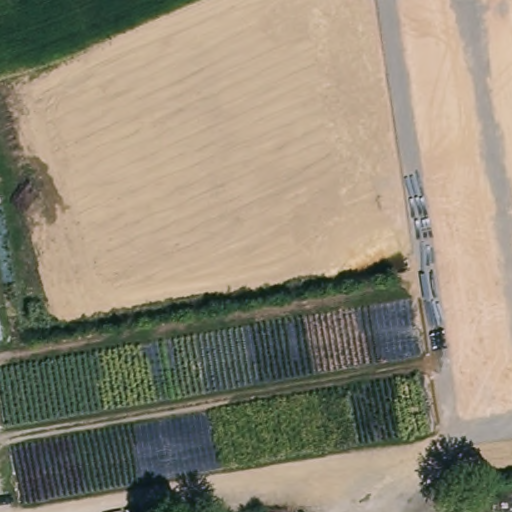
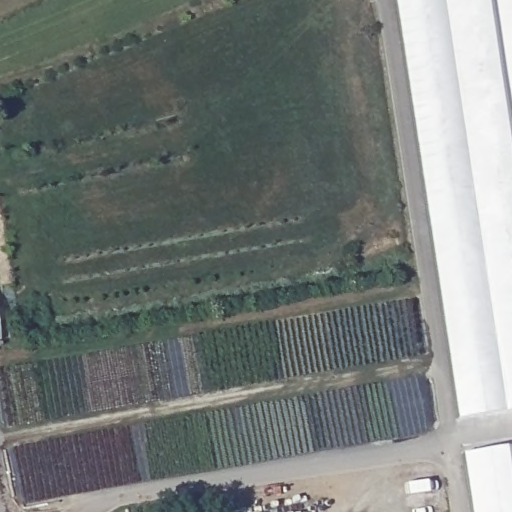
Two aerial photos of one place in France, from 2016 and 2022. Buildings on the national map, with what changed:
new [(395,0),(512,0),(512,409),(457,417),(395,0)]
unchanged [(0,340),(0,332),(2,339),(0,340)]
new [(512,445),(512,512),(471,512),(462,452),(512,445)]

